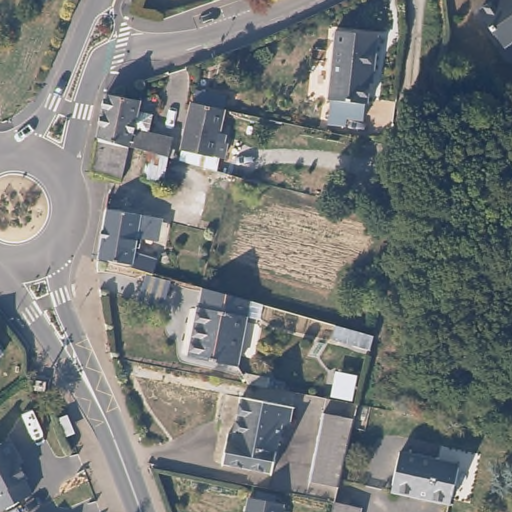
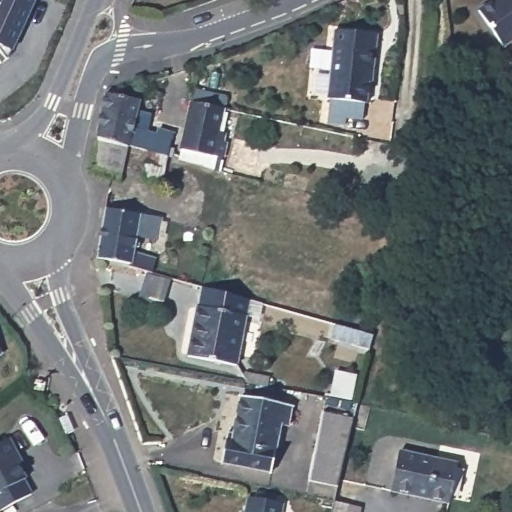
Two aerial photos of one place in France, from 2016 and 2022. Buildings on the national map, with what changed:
new [(13,52),(9,57),(1,64),(0,62),(0,4),(2,6),(5,0),(36,0),(13,52)]
unchanged [(480,11),(494,0),(512,0),(512,41),(506,46),(480,11)]
unchanged [(333,60),(333,38),(377,39),(377,70),(373,71),(372,85),(332,81),(333,60)]
unchanged [(372,85),(372,111),(370,111),(368,127),(331,126),(332,108),(330,107),(332,81),(372,85)]
unchanged [(224,144),(221,159),(212,157),(211,159),(182,152),(191,103),(197,104),(199,92),(224,97),(222,110),(215,143),(224,144)]
unchanged [(97,140),(107,94),(137,101),(135,115),(147,117),(143,134),(174,140),(172,149),(175,150),(174,160),(127,148),(97,140)]
unchanged [(120,183),(90,176),(97,140),(127,148),(120,183)]
unchanged [(209,195),(166,184),(171,161),(215,172),(209,195)]
unchanged [(154,218),(152,236),(134,233),(132,241),(136,243),(135,247),(131,248),(131,254),(152,258),(147,273),(125,267),(125,262),(92,258),(100,208),(154,218)]
unchanged [(166,280),(159,310),(134,304),(141,274),(166,280)]
unchanged [(254,297),(250,314),(247,314),(236,365),(187,354),(197,303),(200,304),(204,285),(254,297)]
unchanged [(5,346),(0,350),(0,340),(5,346)]
unchanged [(292,408),(287,430),(281,428),(272,477),(221,467),(226,437),(232,438),(240,399),(292,408)]
unchanged [(353,424),(336,492),(307,484),(322,415),(353,424)]
unchanged [(8,459),(7,464),(17,483),(15,484),(24,498),(0,511),(0,445),(8,459)]
unchanged [(453,463),(447,502),(388,490),(397,451),(453,463)]
unchanged [(358,512),(331,512),(333,505),(334,500),(359,507),(358,512)]
unchanged [(253,512),(242,512),(242,510),(253,512)]

